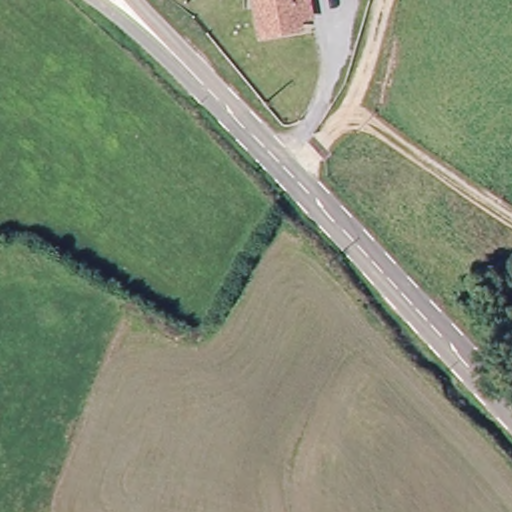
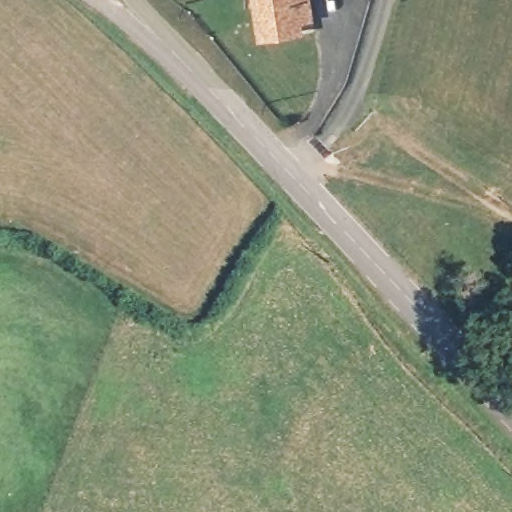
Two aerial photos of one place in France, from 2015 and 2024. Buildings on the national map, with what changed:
unchanged [(252,0),(310,0),(313,18),(303,22),(305,32),(260,42),(252,0)]

